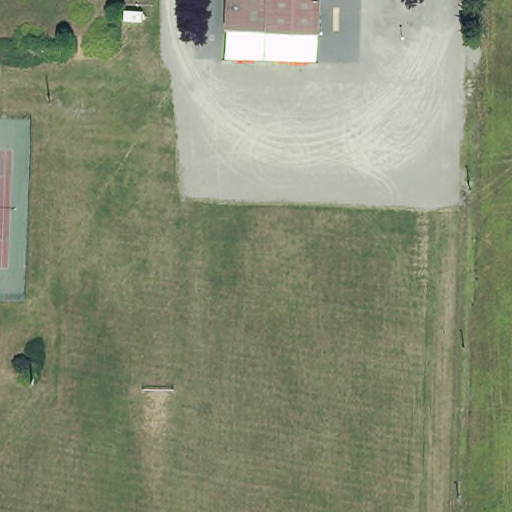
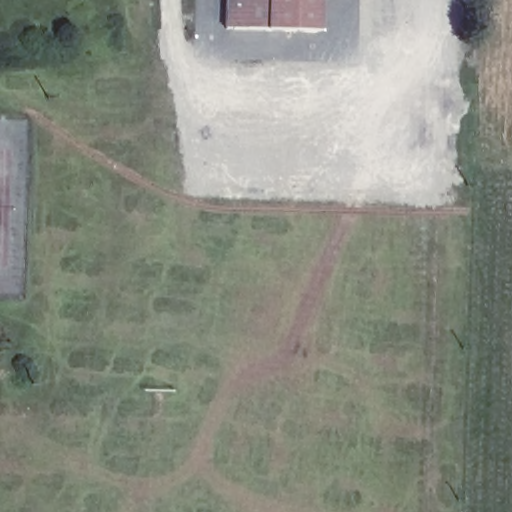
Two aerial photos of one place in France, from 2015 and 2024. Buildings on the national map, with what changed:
unchanged [(322,29),(217,28),(219,0),(323,0),(322,29)]

